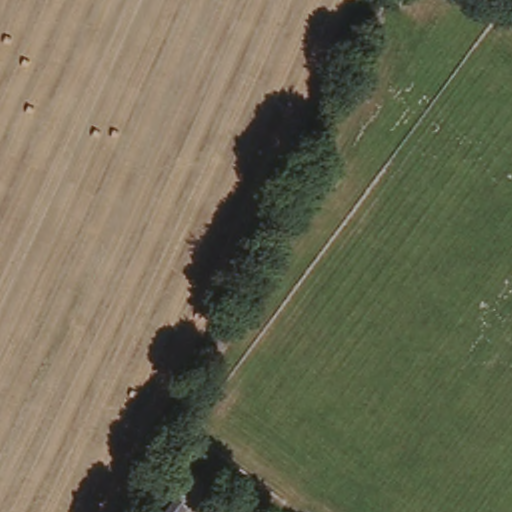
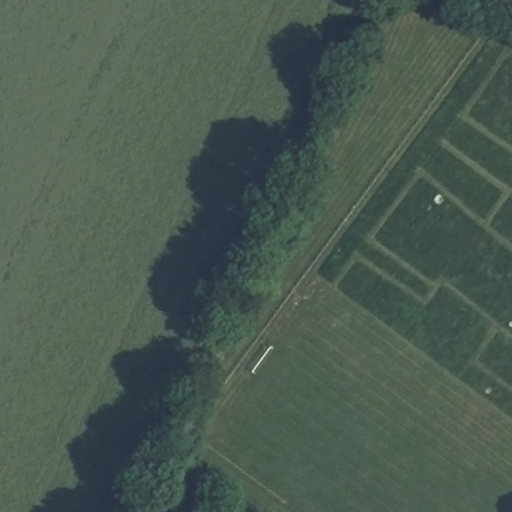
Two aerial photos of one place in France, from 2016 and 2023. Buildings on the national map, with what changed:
unchanged [(190,512),(163,512),(170,502),(190,512)]

